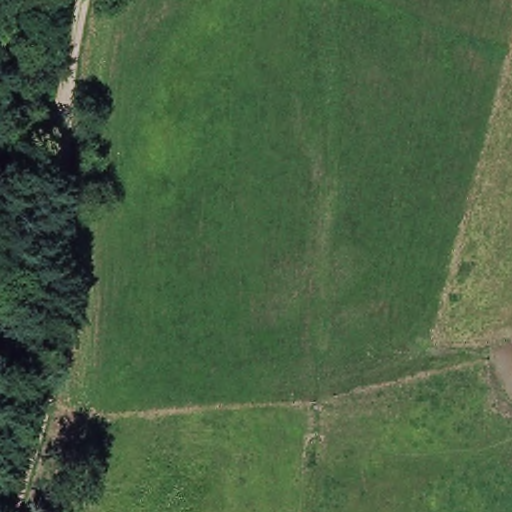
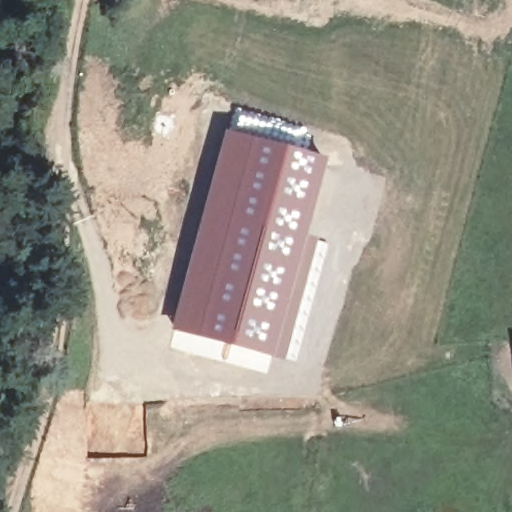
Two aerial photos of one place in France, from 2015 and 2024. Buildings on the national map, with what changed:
new [(329,161),(286,365),(173,335),(226,134),(329,161)]

